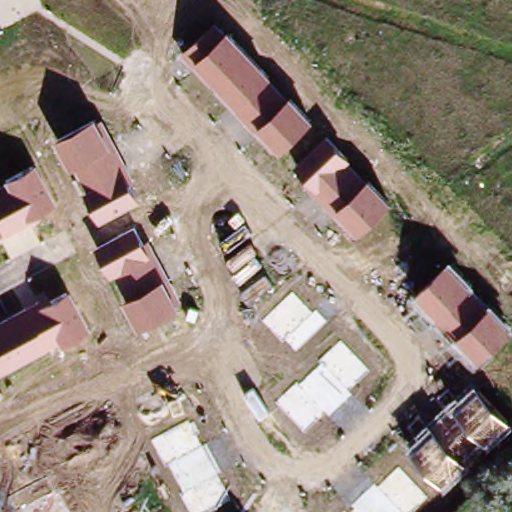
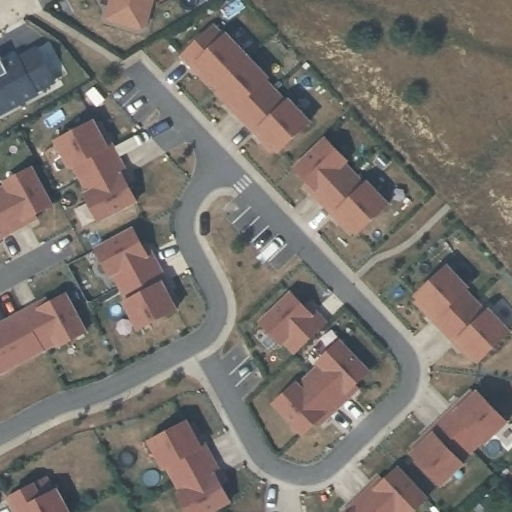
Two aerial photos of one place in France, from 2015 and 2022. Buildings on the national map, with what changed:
new [(144,25),(138,28),(104,18),(110,0),(151,0),(144,25)]
unchanged [(214,24),(313,122),(280,157),(181,56),(214,24)]
new [(56,81),(37,91),(39,93),(0,113),(0,56),(1,55),(3,59),(19,53),(20,55),(37,45),(56,81)]
unchanged [(83,193),(87,191),(75,168),(70,170),(54,142),(95,122),(101,118),(134,181),(128,184),(139,203),(98,224),(83,193)]
unchanged [(327,138),(353,162),(349,167),(393,208),(359,239),(294,169),(327,138)]
unchanged [(6,189),(2,183),(34,165),(53,204),(37,214),(39,219),(0,238),(0,192),(6,189)]
unchanged [(121,303),(130,298),(119,276),(113,278),(96,250),(136,228),(144,243),(148,240),(180,301),(174,305),(178,313),(137,333),(121,303)]
unchanged [(475,285),(467,293),(485,311),(490,304),(512,325),(512,332),(480,365),(410,299),(451,260),(475,285)]
new [(291,290),(313,312),(317,309),(327,320),(294,355),(285,344),(283,347),(258,320),(291,290)]
unchanged [(68,293),(88,333),(60,349),(57,345),(0,375),(0,327),(68,293)]
new [(373,371),(304,437),(272,402),(340,338),(373,371)]
unchanged [(475,385),(511,424),(489,446),(483,440),(463,461),(469,466),(444,488),(408,450),(475,385)]
new [(201,443),(206,440),(221,466),(216,469),(232,500),(210,512),(186,512),(175,492),(179,490),(167,469),(164,470),(148,440),(187,417),(201,443)]
new [(416,512),(340,512),(378,474),(384,479),(399,465),(430,497),(416,512)]
new [(60,487),(73,512),(13,512),(5,494),(45,473),(55,489),(60,487)]

